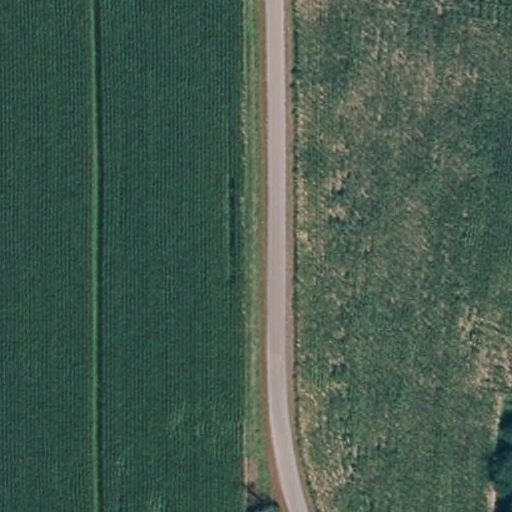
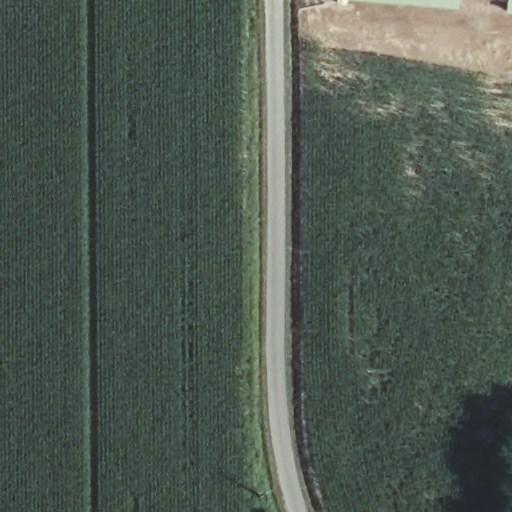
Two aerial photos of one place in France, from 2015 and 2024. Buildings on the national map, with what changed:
new [(459,8),(364,0),(460,0),(459,8)]
new [(512,13),(505,12),(505,0),(512,0),(512,13)]

